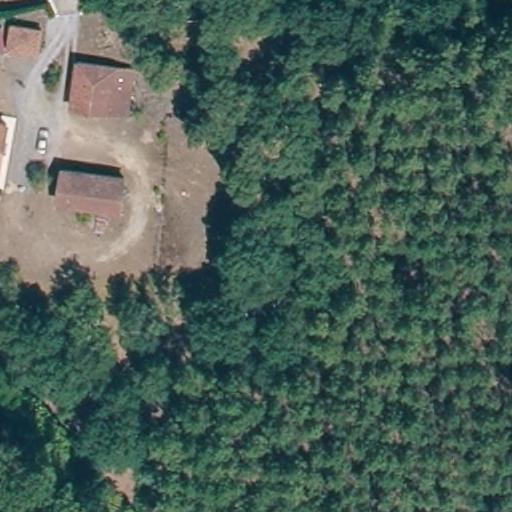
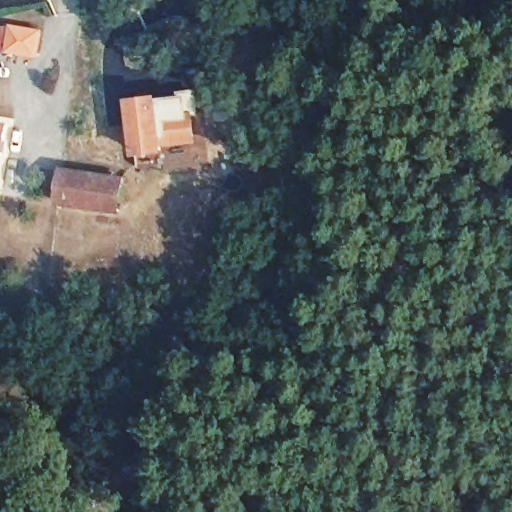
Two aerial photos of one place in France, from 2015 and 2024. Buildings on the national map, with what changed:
new [(2,50),(0,50),(0,27),(2,50)]
unchanged [(41,35),(37,59),(6,54),(10,29),(41,35)]
demolished [(134,74),(126,118),(68,110),(74,64),(134,74)]
new [(159,94),(160,98),(187,94),(197,94),(199,143),(166,147),(167,152),(136,156),(128,99),(159,94)]
unchanged [(8,135),(0,176),(0,133),(8,135)]
unchanged [(123,180),(117,216),(56,209),(62,172),(123,180)]

